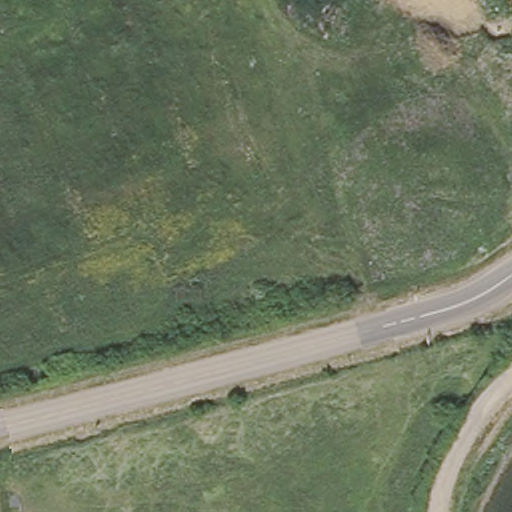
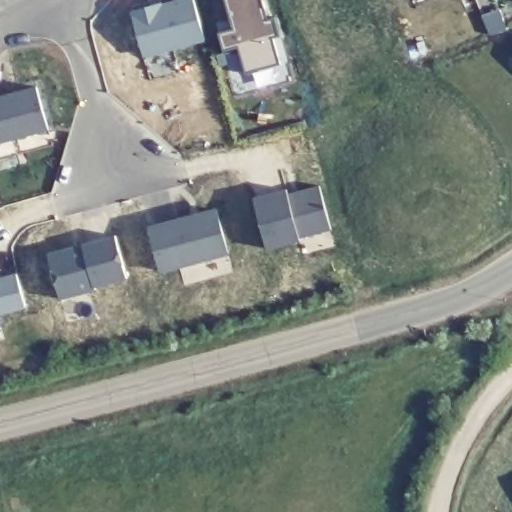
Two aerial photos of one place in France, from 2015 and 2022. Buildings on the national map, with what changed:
new [(206,40),(144,57),(131,10),(163,1),(164,3),(175,0),(195,0),(206,40)]
new [(266,20),(277,17),(281,35),(274,36),(281,64),(246,74),(240,47),(223,51),(219,33),(235,29),(227,0),(261,0),(266,20)]
new [(49,129),(0,142),(0,96),(37,86),(49,129)]
new [(286,191),(287,196),(320,187),(331,232),(299,240),(301,246),(267,254),(253,200),(286,191)]
new [(229,251),(234,272),(185,285),(181,265),(161,270),(149,228),(218,210),(229,251)]
new [(127,277),(90,288),(97,315),(67,323),(61,298),(49,254),(116,235),(127,277)]
new [(17,275),(25,310),(0,317),(0,279),(17,275)]
new [(1,328),(0,328),(0,324),(1,328)]

